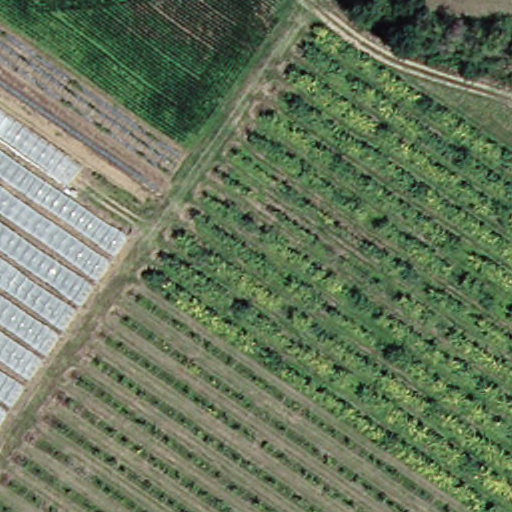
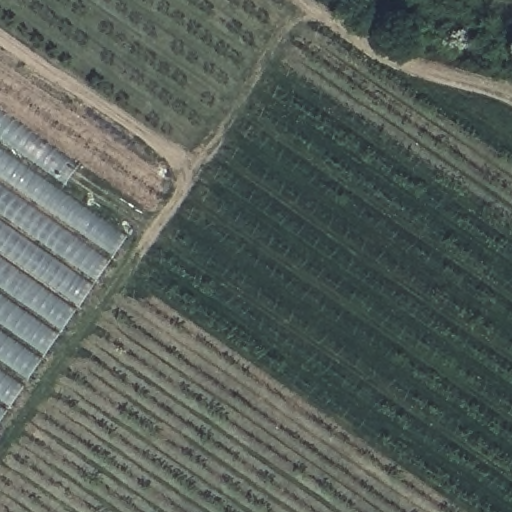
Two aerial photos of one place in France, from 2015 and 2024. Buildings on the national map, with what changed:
unchanged [(0,402),(0,150),(118,231),(0,402)]

